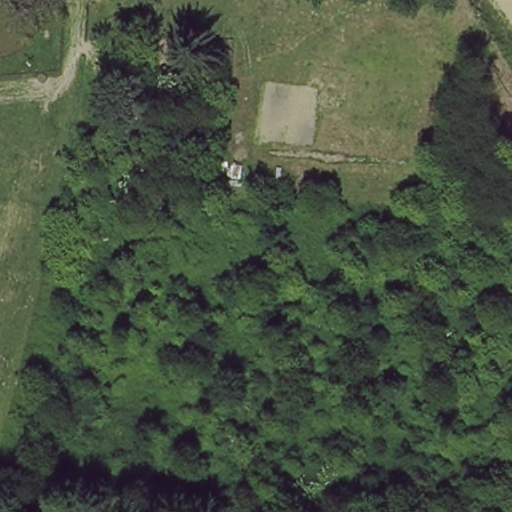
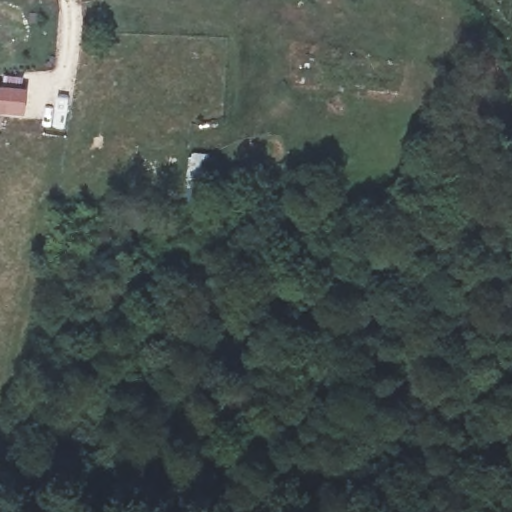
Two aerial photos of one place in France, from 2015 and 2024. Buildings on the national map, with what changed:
new [(28,88),(25,115),(0,113),(0,86),(28,88)]

